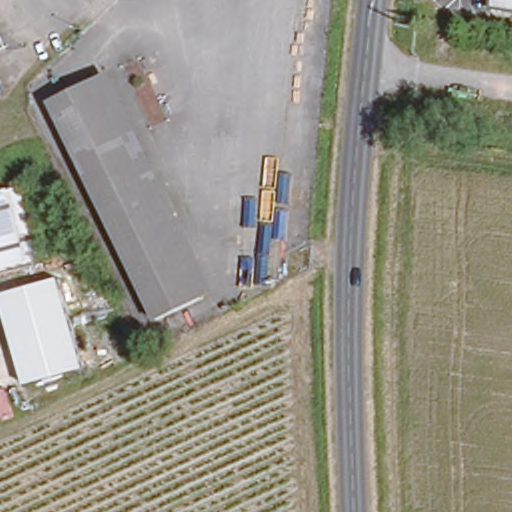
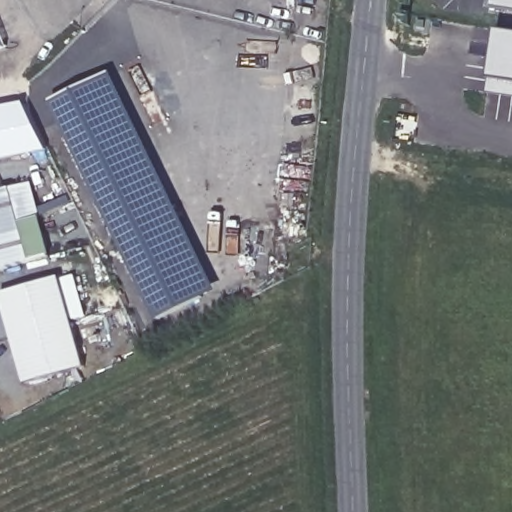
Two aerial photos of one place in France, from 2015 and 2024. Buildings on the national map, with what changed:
unchanged [(494,0),(512,0),(512,11),(492,8),(494,0)]
new [(492,79),(500,30),(512,32),(512,96),(489,93),(492,79)]
unchanged [(203,298),(157,319),(57,105),(104,83),(203,298)]
new [(49,151),(0,161),(0,109),(25,104),(49,151)]
unchanged [(41,261),(0,273),(0,193),(20,187),(41,261)]
unchanged [(2,299),(60,282),(85,370),(27,387),(2,299)]

